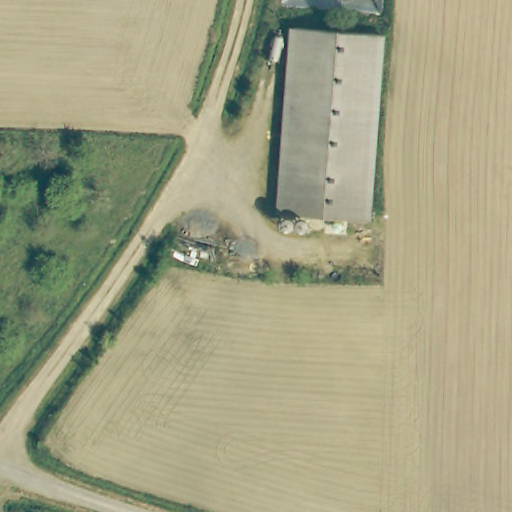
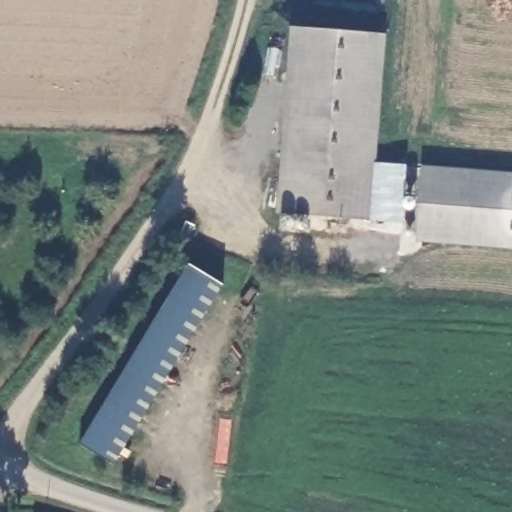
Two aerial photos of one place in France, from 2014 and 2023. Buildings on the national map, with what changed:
unchanged [(383,35),(371,225),(303,221),(305,234),(271,230),(287,29),(383,35)]
new [(512,173),(512,249),(416,242),(422,166),(512,173)]
new [(190,265),(222,283),(116,468),(79,445),(190,265)]

